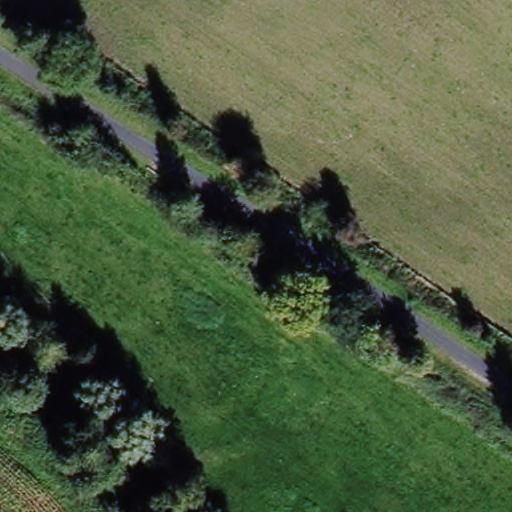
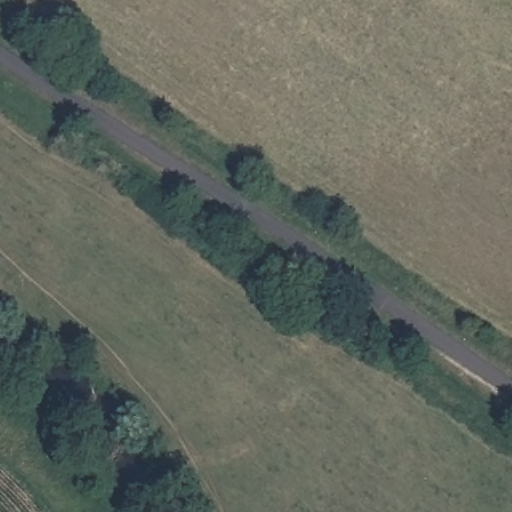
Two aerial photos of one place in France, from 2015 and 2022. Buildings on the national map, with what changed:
[]

